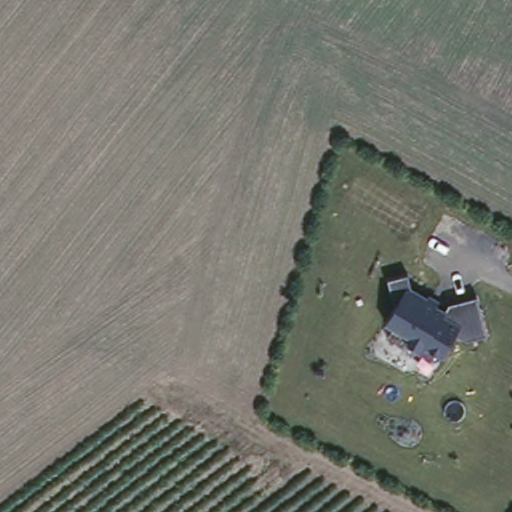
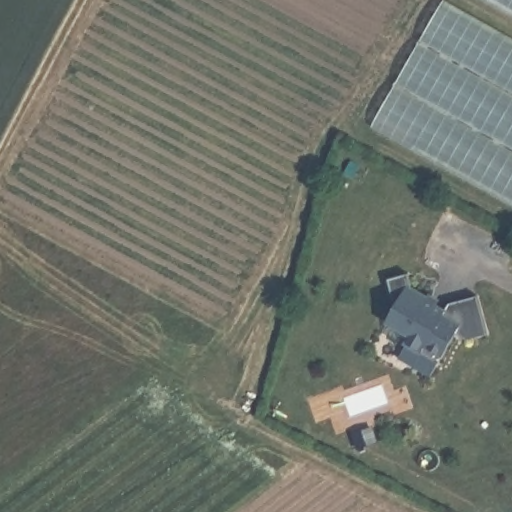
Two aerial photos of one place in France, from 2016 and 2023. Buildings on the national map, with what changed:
new [(512,202),(370,122),(440,0),(452,0),(512,33),(512,202)]
new [(512,18),(480,0),(512,0),(512,18)]
unchanged [(414,293),(444,307),(477,299),(485,335),(449,343),(439,357),(385,328),(392,310),(384,279),(407,272),(414,293)]

